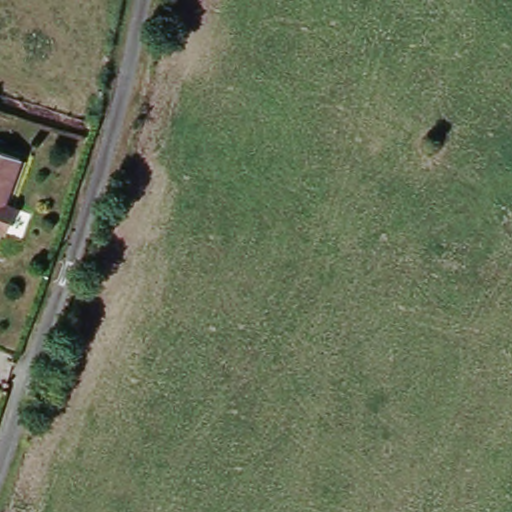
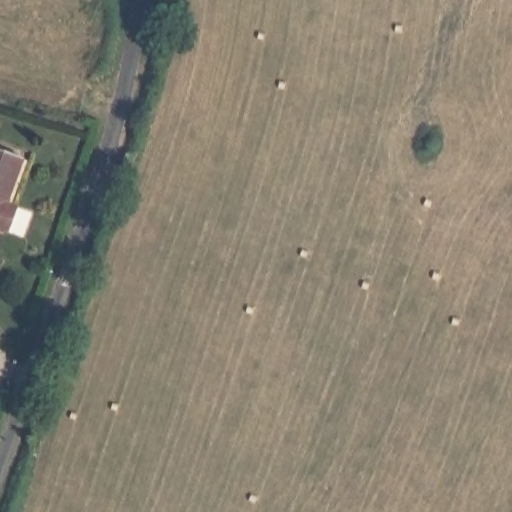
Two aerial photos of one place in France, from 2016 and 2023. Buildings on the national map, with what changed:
unchanged [(7,207),(18,210),(10,235),(0,233),(0,153),(23,160),(7,207)]

